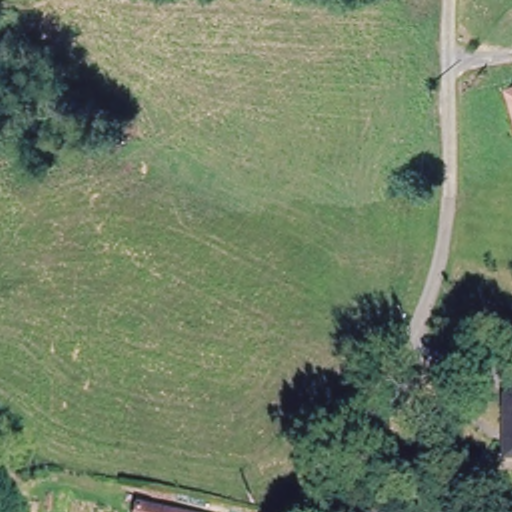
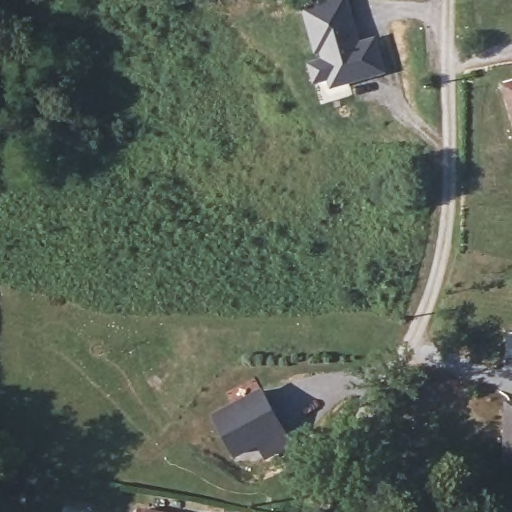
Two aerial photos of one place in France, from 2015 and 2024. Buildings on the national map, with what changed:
new [(331,88),(327,79),(313,84),(307,63),(321,59),(318,50),(315,51),(302,9),(331,0),(349,0),(362,40),(375,36),(385,71),(331,88)]
unchanged [(512,80),(512,125),(500,83),(512,80)]
new [(264,456),(256,443),(234,455),(214,415),(263,390),(292,442),(264,456)]
unchanged [(507,404),(512,405),(512,465),(501,464),(507,404)]

